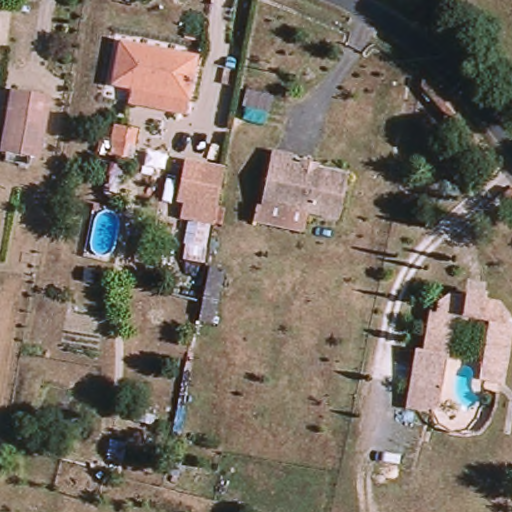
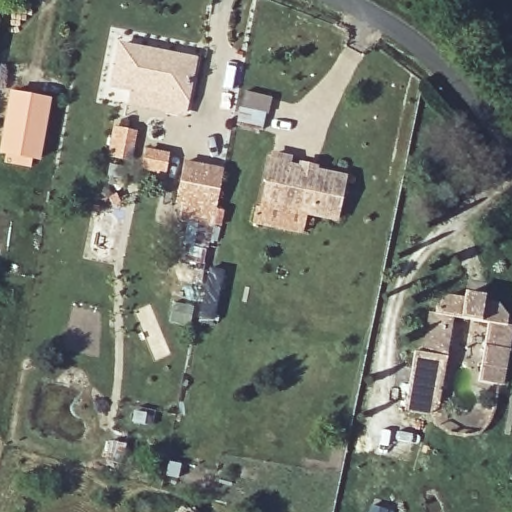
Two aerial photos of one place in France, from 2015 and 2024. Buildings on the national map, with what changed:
unchanged [(185,100),(108,88),(114,48),(190,59),(185,100)]
unchanged [(11,94),(46,100),(37,158),(1,152),(11,94)]
unchanged [(130,137),(128,150),(114,148),(116,135),(130,137)]
unchanged [(341,218),(266,205),(274,155),(291,158),(290,164),(303,166),(304,162),(317,164),(317,169),(348,174),(341,218)]
unchanged [(174,218),(177,205),(170,204),(178,164),(221,173),(211,225),(174,218)]
unchanged [(443,298),(444,296),(455,296),(456,294),(466,295),(468,300),(483,304),(498,316),(501,330),(506,330),(498,386),(471,382),(480,325),(447,319),(436,387),(426,385),(421,411),(396,407),(406,354),(415,355),(426,310),(433,300),(443,298)]

